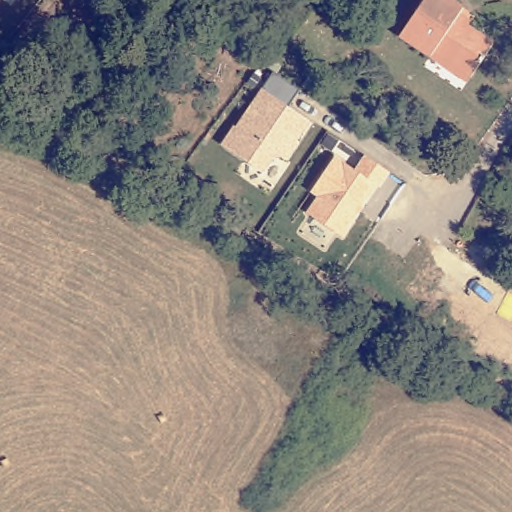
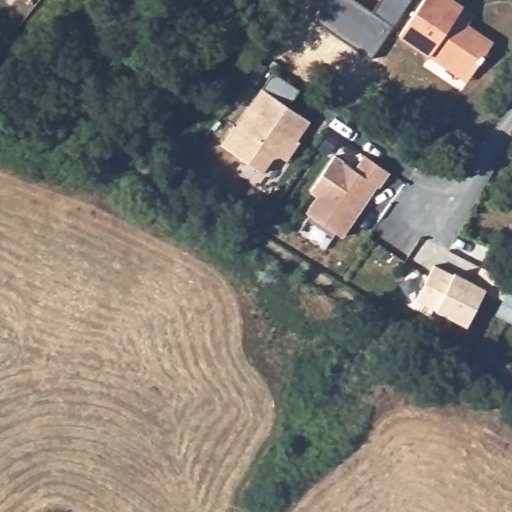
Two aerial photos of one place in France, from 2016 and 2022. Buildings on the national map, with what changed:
unchanged [(433,57),(402,36),(426,0),(458,0),(471,9),(469,13),(480,21),(475,29),(496,44),(474,77),(470,82),(433,57)]
unchanged [(285,160),(276,154),(264,172),(220,144),(259,87),(264,90),(275,75),(299,91),(288,107),(310,123),(285,160)]
unchanged [(344,238),(335,232),(330,239),(308,225),(312,216),(306,212),(316,196),(310,192),(334,154),(353,168),(364,154),(389,171),(344,238)]
new [(435,264),(455,273),(477,284),(484,268),(512,282),(507,289),(502,299),(489,288),(469,326),(436,310),(417,301),(435,264)]
unchanged [(494,315),(502,299),(507,289),(512,292),(512,323),(494,315)]

